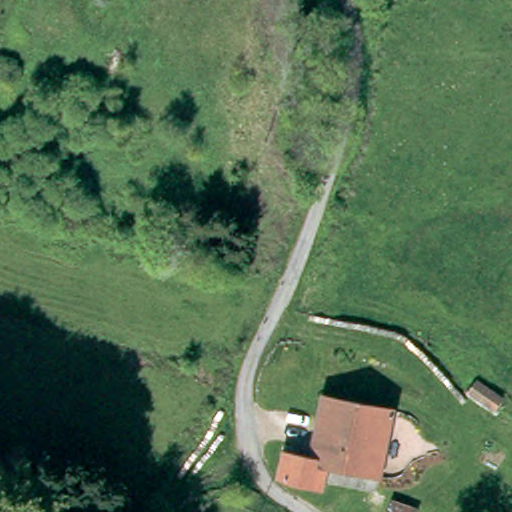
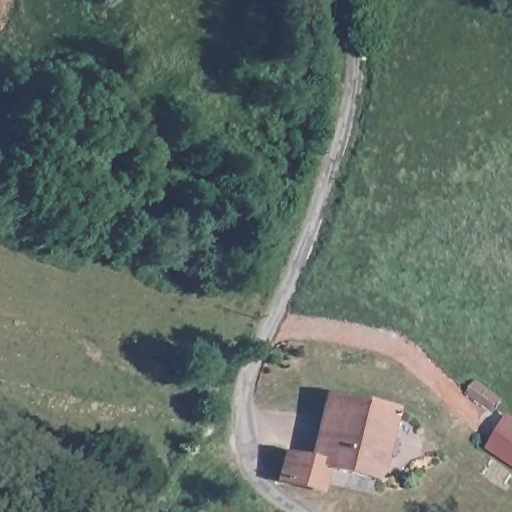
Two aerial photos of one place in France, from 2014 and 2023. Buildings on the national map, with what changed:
unchanged [(319,398),(385,415),(372,473),(321,461),(308,457),(319,398)]
new [(511,413),(512,414),(512,464),(487,448),(511,413)]
unchanged [(316,486),(275,476),(281,451),(308,457),(321,461),(316,486)]

